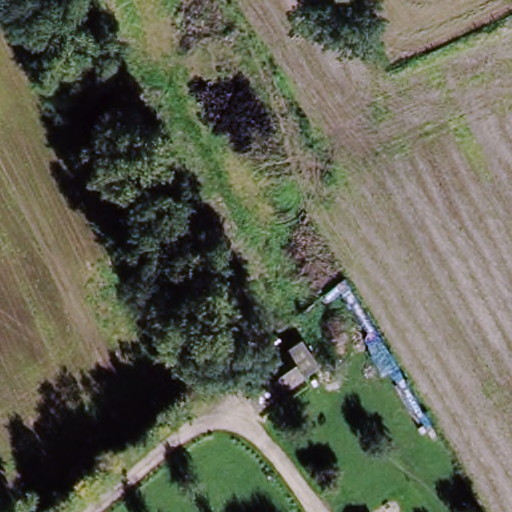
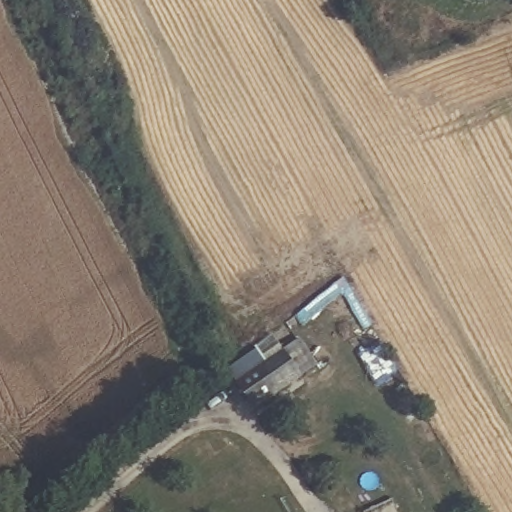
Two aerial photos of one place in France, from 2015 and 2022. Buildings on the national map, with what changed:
unchanged [(292,370),(250,403),(232,381),(275,348),(292,370)]

